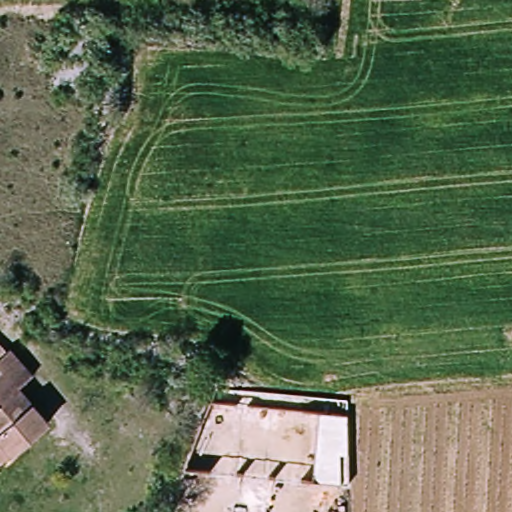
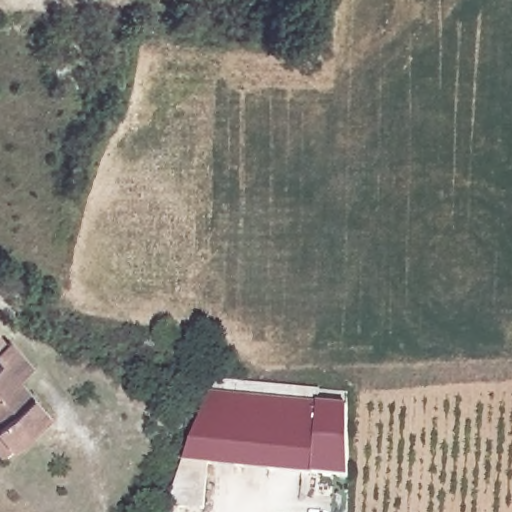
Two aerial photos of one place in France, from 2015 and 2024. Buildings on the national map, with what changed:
unchanged [(16,342),(40,370),(25,383),(52,414),(19,443),(0,422),(0,371),(7,365),(0,357),(0,335),(11,347),(16,342)]
new [(217,379),(322,388),(319,406),(312,473),(208,465),(206,508),(168,508),(184,462),(211,391),(217,379)]
unchanged [(346,409),(349,478),(312,473),(319,406),(346,409)]

